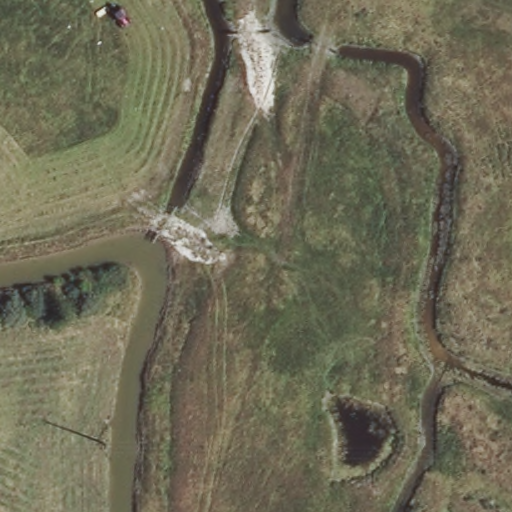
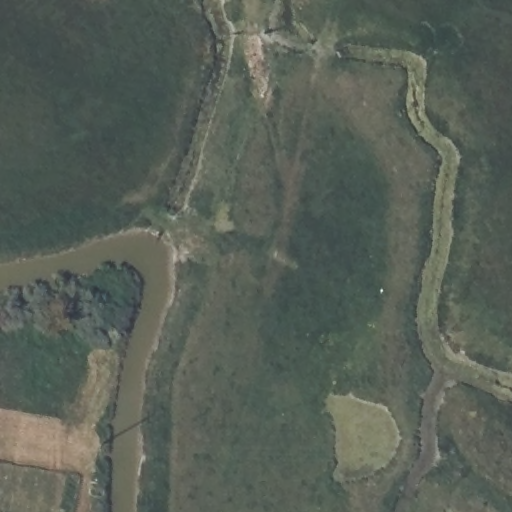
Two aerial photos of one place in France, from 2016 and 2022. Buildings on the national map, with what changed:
[]

